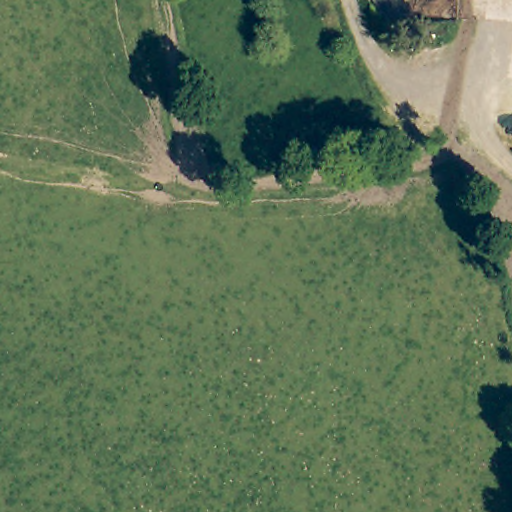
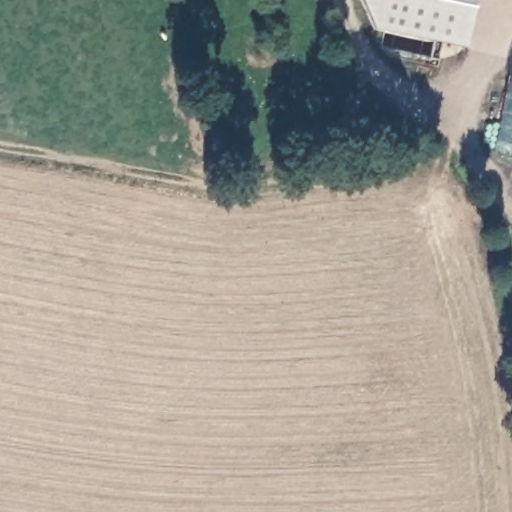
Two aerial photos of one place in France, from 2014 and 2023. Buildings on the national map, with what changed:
new [(360,0),(476,0),(466,49),(375,30),(360,0)]

